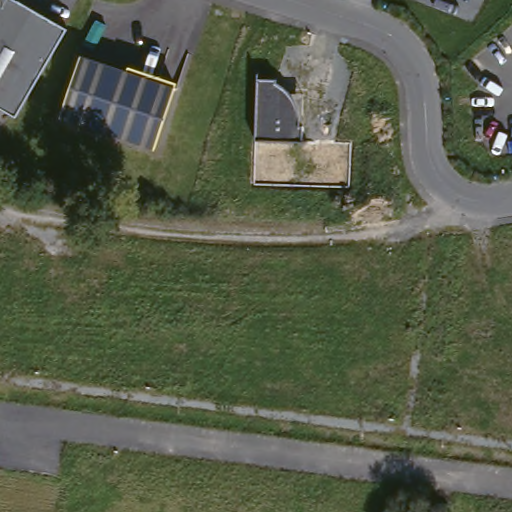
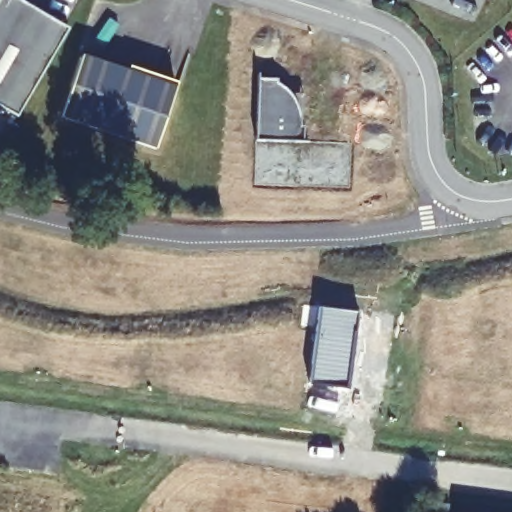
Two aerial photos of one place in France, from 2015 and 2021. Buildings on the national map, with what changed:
unchanged [(0,106),(0,4),(3,0),(15,0),(70,34),(71,35),(21,119),(17,116),(0,106)]
unchanged [(64,118),(88,57),(179,93),(156,153),(64,118)]
unchanged [(259,76),(279,77),(279,81),(286,85),(292,92),(300,92),(305,93),(301,131),(303,131),(301,148),(254,144),(259,76)]
new [(319,307),(359,313),(356,334),(349,333),(347,343),(353,344),(347,389),(309,384),(319,307)]

